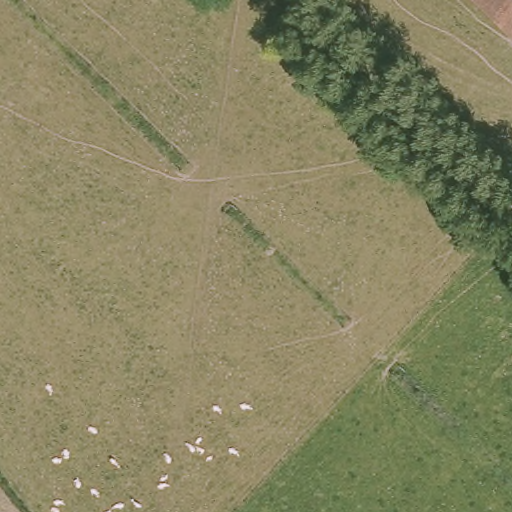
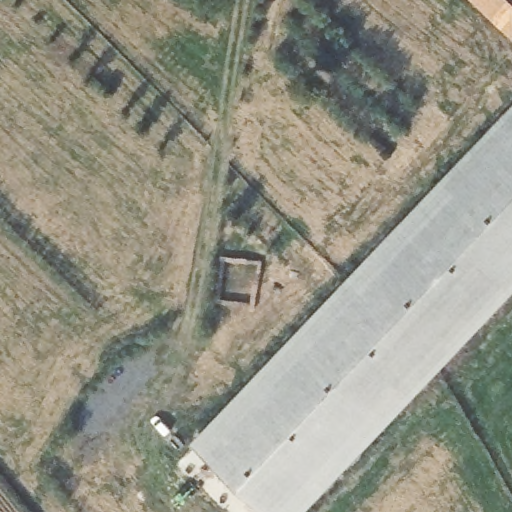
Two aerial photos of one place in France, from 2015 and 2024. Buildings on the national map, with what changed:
unchanged [(486,0),(512,0),(512,23),(486,0)]
new [(306,512),(263,512),(191,443),(512,105),(512,295),(306,512)]

